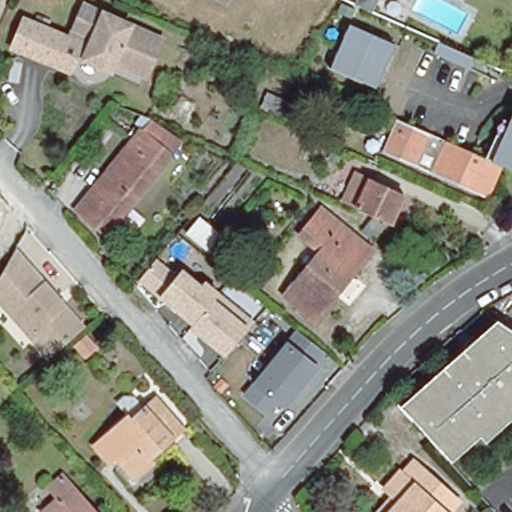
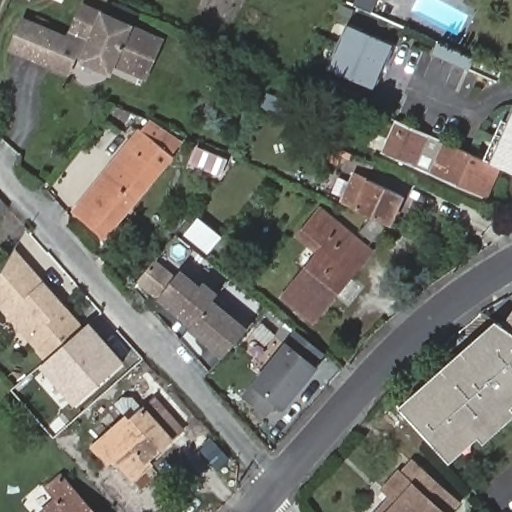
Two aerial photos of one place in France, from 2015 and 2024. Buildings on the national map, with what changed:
unchanged [(164,35),(151,62),(147,72),(115,57),(106,54),(102,62),(84,55),(91,38),(94,34),(74,26),(85,0),(164,35)]
new [(358,0),(379,0),(373,13),(355,6),(358,0)]
unchanged [(84,40),(71,68),(17,47),(28,17),(84,40)]
unchanged [(346,26),(392,47),(372,91),(326,69),(346,26)]
unchanged [(472,60),(467,71),(430,54),(435,44),(472,60)]
unchanged [(299,111),(292,126),(261,112),(267,98),(299,111)]
unchanged [(512,173),(502,169),(492,164),(512,119),(512,173)]
unchanged [(181,145),(104,238),(75,213),(151,121),(181,145)]
unchanged [(394,157),(384,154),(398,122),(407,127),(416,131),(492,164),(502,169),(488,199),(394,157)]
unchanged [(351,206),(353,202),(364,178),(365,176),(376,181),(413,197),(400,227),(363,211),(351,206)]
unchanged [(289,297),(324,254),(305,237),(326,212),(370,247),(375,251),(363,265),(318,320),(289,297)]
unchanged [(385,240),(371,230),(379,220),(392,231),(385,240)]
unchanged [(226,237),(214,253),(192,236),(205,221),(226,237)]
unchanged [(15,251),(83,328),(48,360),(31,341),(35,337),(0,298),(0,276),(15,251)]
unchanged [(223,359),(189,329),(192,325),(139,282),(157,260),(174,275),(182,268),(201,285),(205,280),(255,323),(223,359)]
new [(512,335),(504,330),(512,317),(512,335)]
new [(48,360),(83,328),(90,322),(125,361),(75,405),(40,367),(48,360)]
unchanged [(283,407),(278,402),(266,417),(240,397),(296,330),(324,355),(283,407)]
unchanged [(512,335),(512,417),(477,447),(472,441),(448,462),(408,417),(406,416),(504,330),(512,335)]
unchanged [(151,465),(135,480),(115,458),(108,464),(93,448),(126,417),(130,422),(154,399),(176,423),(181,430),(173,437),(149,461),(151,465)]
unchanged [(382,491),(399,472),(403,475),(414,462),(460,501),(450,512),(375,512),(388,497),(382,491)]
unchanged [(51,490),(65,477),(97,512),(48,512),(61,500),(51,490)]

